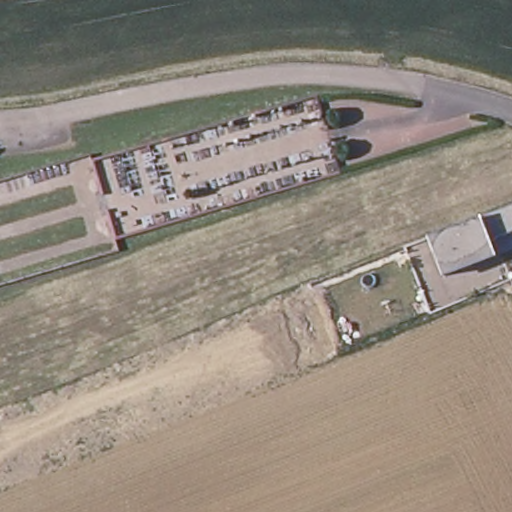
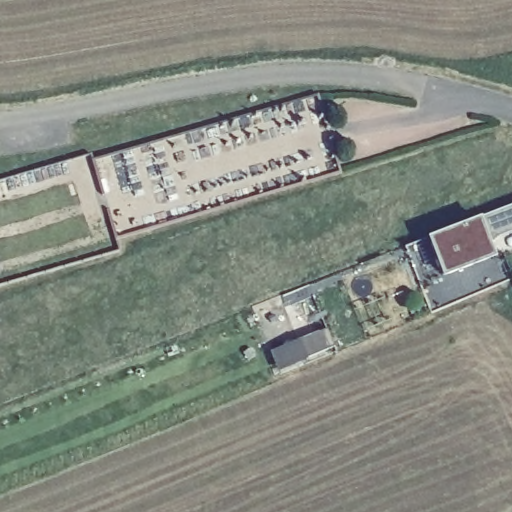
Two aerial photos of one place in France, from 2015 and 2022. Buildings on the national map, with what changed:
unchanged [(497,260),(443,279),(427,235),(512,204),(512,232),(490,239),(497,260)]
new [(327,330),(333,347),(279,369),(272,351),(327,330)]

